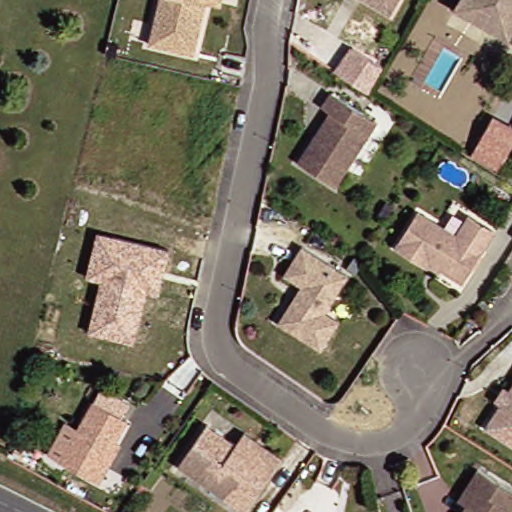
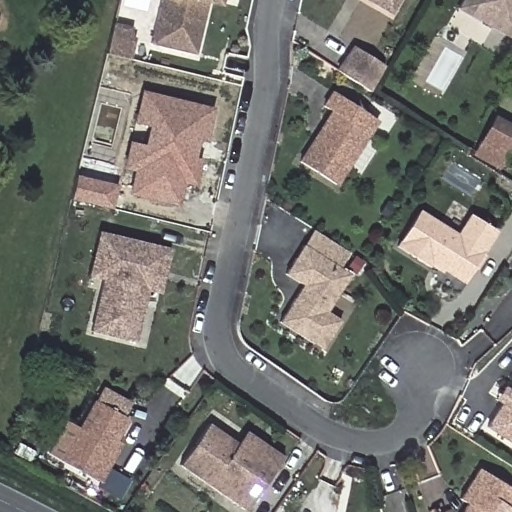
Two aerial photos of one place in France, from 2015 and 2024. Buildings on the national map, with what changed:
unchanged [(160,0),(221,0),(220,7),(205,4),(193,56),(149,45),(160,0)]
unchanged [(372,6),(361,0),(397,0),(389,16),(372,6)]
unchanged [(460,0),(457,5),(448,0),(460,0)]
unchanged [(455,10),(457,5),(460,0),(512,0),(512,32),(508,40),(455,10)]
unchanged [(336,73),(351,48),(383,68),(371,89),(369,94),(336,73)]
new [(134,142),(148,145),(153,123),(139,119),(145,91),(215,107),(208,136),(201,135),(196,156),(204,158),(198,181),(187,178),(182,201),(134,191),(123,188),(129,165),(134,142)]
unchanged [(323,108),(332,94),(364,115),(376,122),(369,134),(336,187),(300,164),(317,136),(325,124),(332,113),(323,108)]
new [(474,155),(494,116),(512,125),(512,148),(501,170),(474,155)]
new [(81,175),(120,185),(115,206),(76,197),(81,175)]
unchanged [(454,236),(465,217),(490,233),(459,284),(426,263),(423,267),(392,248),(415,212),(454,236)]
unchanged [(89,329),(101,277),(87,274),(97,230),(112,233),(168,247),(163,268),(158,291),(145,288),(133,339),(89,329)]
unchanged [(317,351),(309,346),(274,324),(289,300),(294,303),(302,290),(280,276),(298,247),(344,276),(321,313),(335,322),(317,351)]
unchanged [(496,406),(489,402),(497,389),(504,393),(512,380),(512,449),(481,429),(496,406)]
unchanged [(112,460),(108,469),(99,484),(62,463),(64,459),(95,403),(127,420),(114,444),(120,447),(112,460)]
unchanged [(174,465),(203,424),(232,444),(240,432),(277,458),(269,470),(240,511),(174,465)]
unchanged [(470,511),(455,502),(474,472),(512,496),(512,504),(507,512),(469,512),(470,511)]

